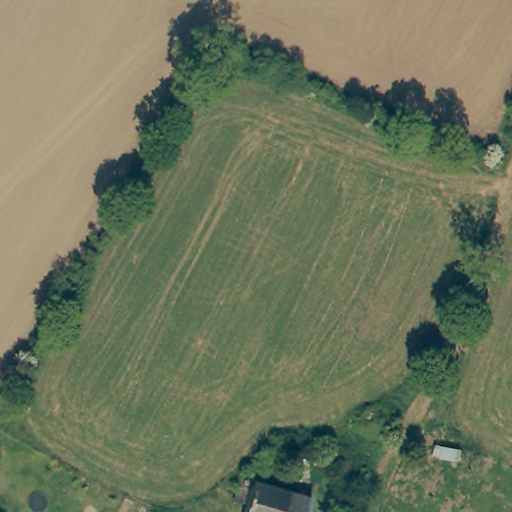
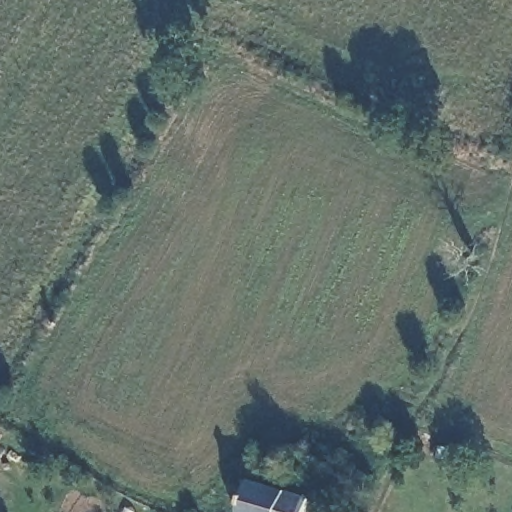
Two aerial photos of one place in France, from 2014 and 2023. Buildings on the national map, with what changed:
unchanged [(281,512),(245,512),(232,505),(242,475),(256,478),(289,487),(281,512)]
unchanged [(318,497),(312,512),(281,512),(289,487),(318,497)]

